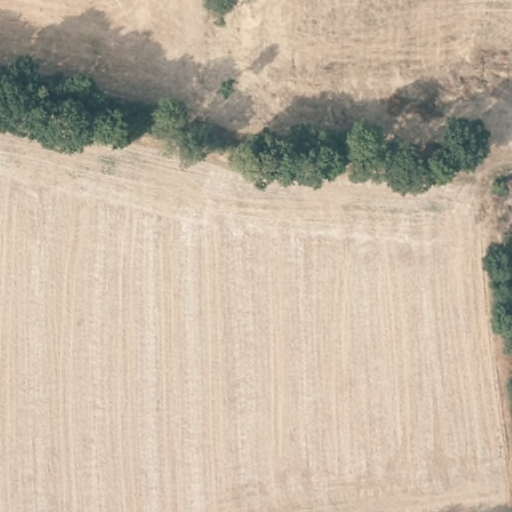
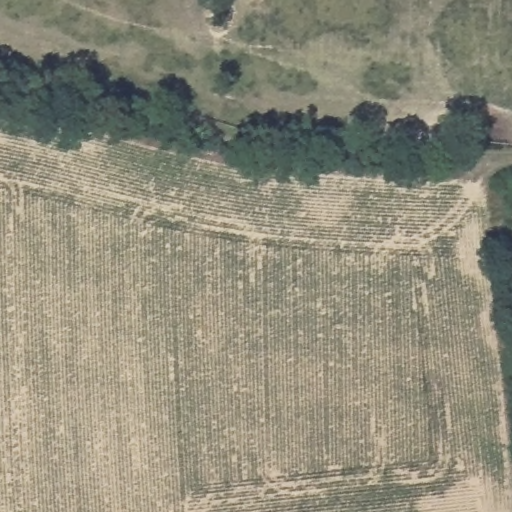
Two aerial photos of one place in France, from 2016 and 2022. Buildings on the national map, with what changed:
[]

